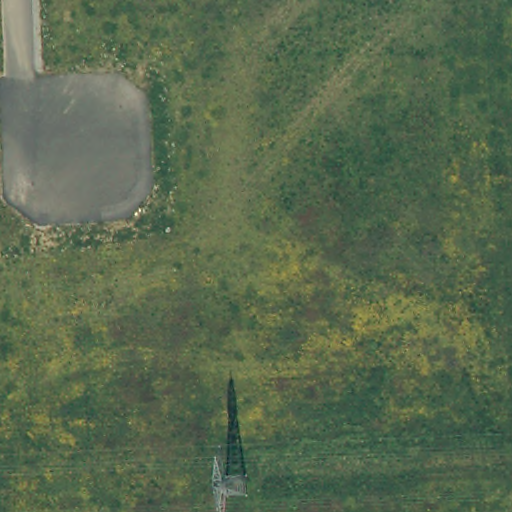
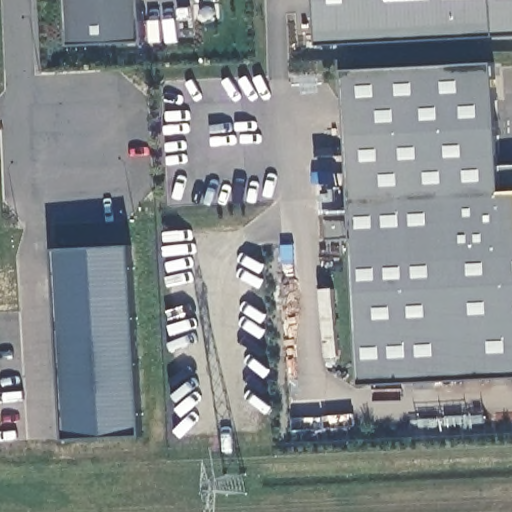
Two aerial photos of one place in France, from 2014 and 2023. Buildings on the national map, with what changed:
new [(143,40),(71,47),(69,0),(141,0),(143,40)]
new [(512,35),(496,36),(318,46),(315,0),(512,0),(512,35)]
new [(512,166),(512,378),(361,386),(354,239),(328,240),(327,217),(353,215),(344,72),(494,64),(498,166),(512,166)]
new [(54,249),(129,247),(139,436),(64,439),(54,249)]

